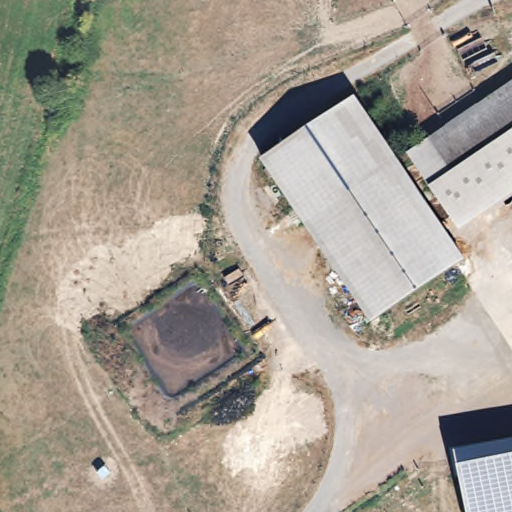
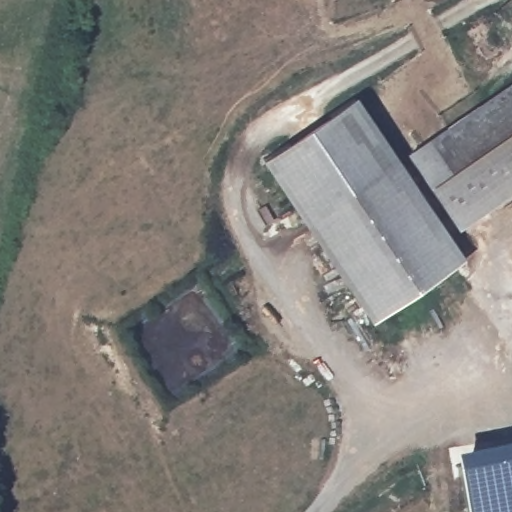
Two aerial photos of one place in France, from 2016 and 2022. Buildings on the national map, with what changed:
unchanged [(450,225),(409,160),(512,95),(512,186),(450,225)]
unchanged [(355,99),(409,160),(466,258),(373,325),(250,169),(355,99)]
unchanged [(456,448),(512,438),(512,512),(468,512),(456,448)]

